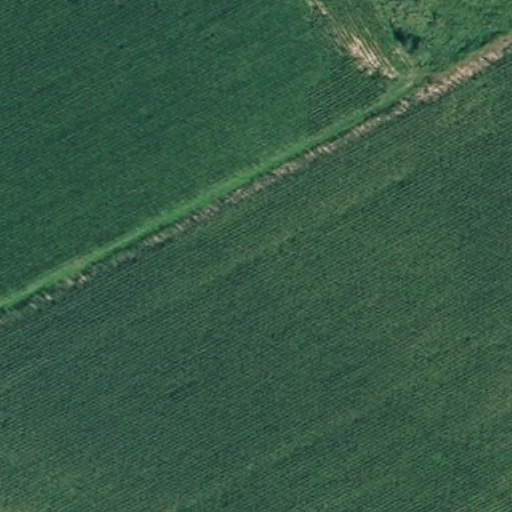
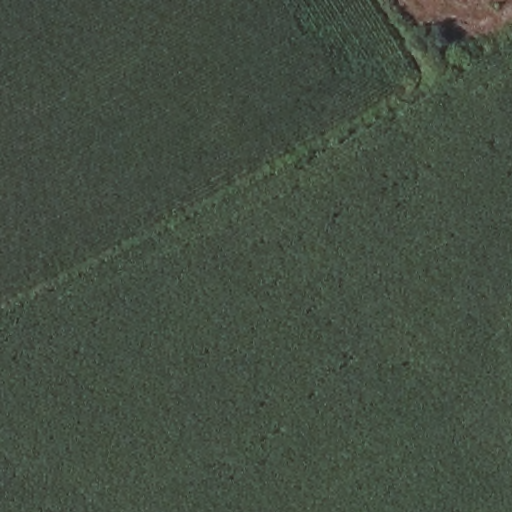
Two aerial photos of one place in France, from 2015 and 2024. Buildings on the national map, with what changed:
[]

